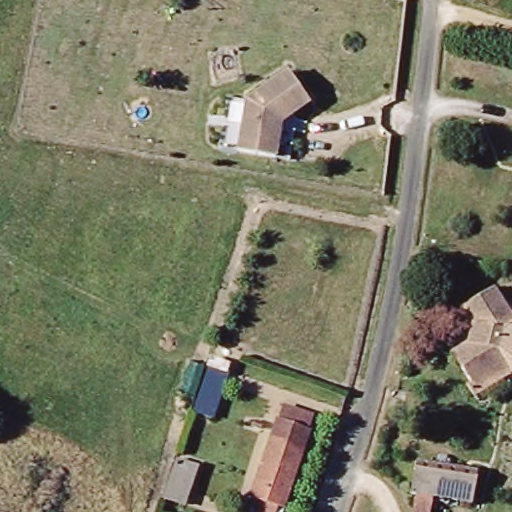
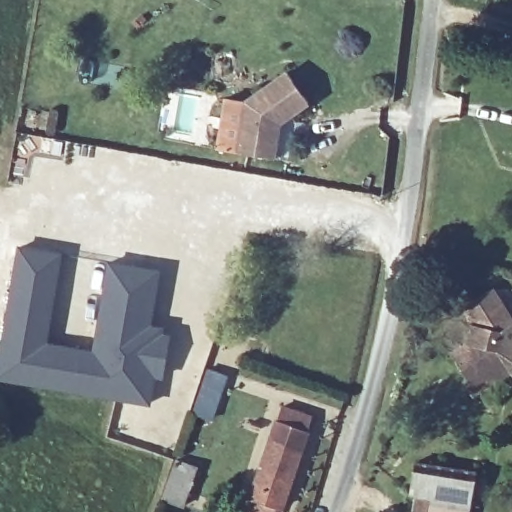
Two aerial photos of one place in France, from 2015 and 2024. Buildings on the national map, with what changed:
unchanged [(237,150),(245,100),(288,71),(308,101),(290,113),(294,118),(287,158),(273,156),(237,150)]
new [(0,378),(0,338),(16,248),(57,255),(41,344),(91,352),(106,263),(147,270),(155,272),(146,326),(159,328),(158,335),(166,336),(159,376),(151,375),(147,395),(146,403),(125,399),(0,378)]
unchanged [(504,353),(511,363),(479,385),(457,357),(471,346),(476,323),(468,307),(496,287),(512,311),(512,328),(506,332),(504,353)]
unchanged [(214,353),(224,358),(220,371),(228,377),(213,420),(195,413),(214,353)]
unchanged [(274,512),(254,512),(253,511),(259,498),(255,496),(283,405),(314,414),(284,506),(279,503),(274,512)]
unchanged [(166,498),(180,457),(201,464),(187,505),(166,498)]
unchanged [(433,512),(412,512),(416,494),(413,493),(418,464),(478,474),(472,506),(436,499),(433,512)]

